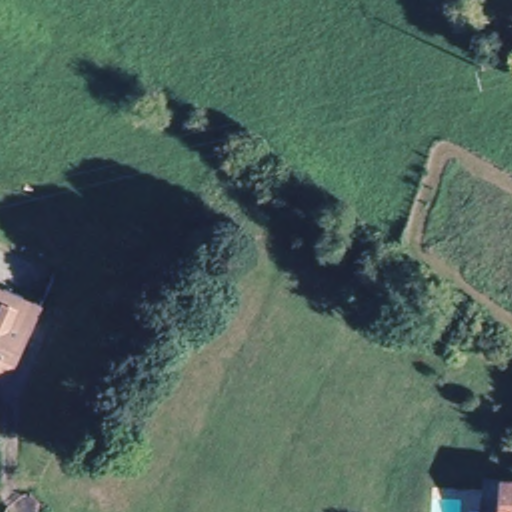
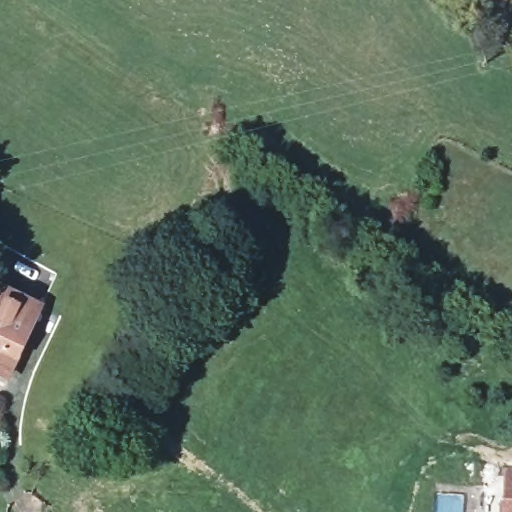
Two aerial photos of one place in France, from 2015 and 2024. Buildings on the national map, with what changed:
unchanged [(35,310),(7,374),(0,370),(0,294),(35,310)]
unchanged [(506,469),(512,470),(512,512),(503,512),(506,469)]

